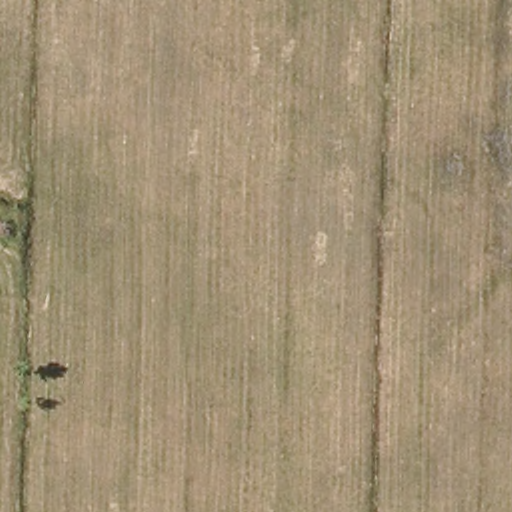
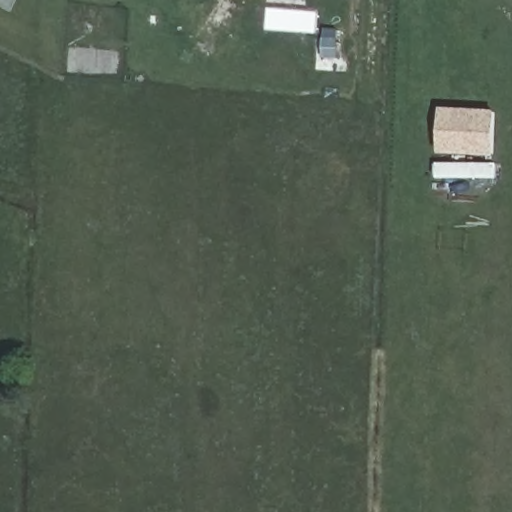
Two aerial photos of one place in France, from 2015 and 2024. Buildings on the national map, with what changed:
new [(440,107),(492,110),(490,152),(438,149),(440,107)]

